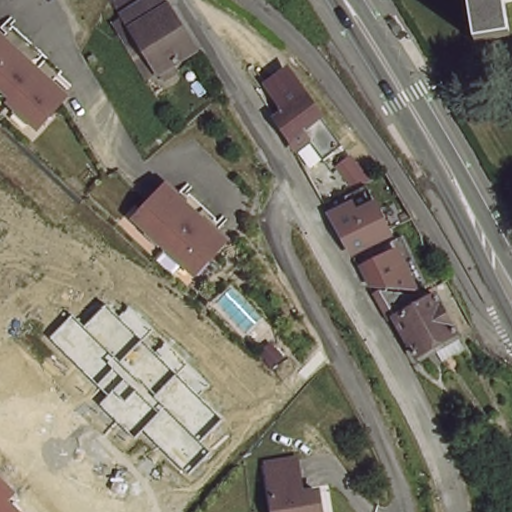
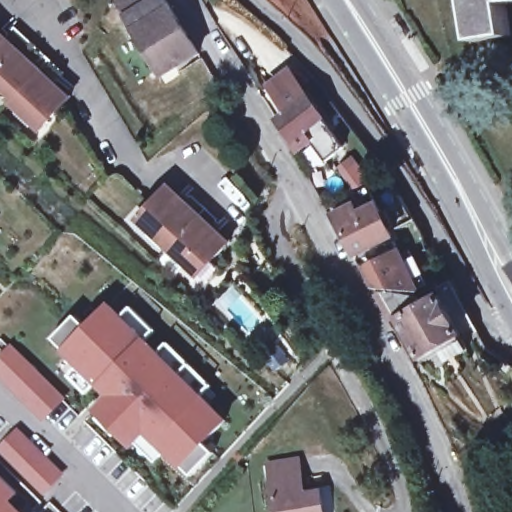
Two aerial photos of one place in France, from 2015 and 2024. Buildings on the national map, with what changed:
unchanged [(160,74),(115,0),(167,0),(199,52),(160,74)]
unchanged [(512,37),(476,42),(469,0),(512,0),(512,3),(508,4),(512,37)]
unchanged [(14,27),(63,72),(59,77),(74,91),(44,125),(15,100),(0,85),(0,25),(9,32),(14,27)]
unchanged [(348,152),(327,163),(315,140),(300,147),(296,139),(279,119),(289,111),(277,94),(270,85),(289,71),(296,80),(329,125),(348,152)]
unchanged [(169,184),(187,199),(192,194),(219,217),(214,224),(231,239),(204,267),(198,273),(138,219),(144,212),(169,184)]
unchanged [(356,199),(361,209),(378,200),(394,232),(358,251),(336,210),(356,199)]
unchanged [(403,247),(433,296),(419,303),(415,297),(380,292),(359,263),(403,247)]
unchanged [(415,297),(419,303),(433,296),(462,350),(450,357),(442,342),(414,357),(380,292),(415,297)]
unchanged [(74,315),(87,329),(112,303),(126,317),(136,306),(157,328),(143,342),(161,359),(172,346),(212,387),(201,397),(224,422),(201,446),(212,457),(191,477),(145,430),(137,437),(101,404),(110,397),(51,338),(74,315)]
new [(65,399),(44,422),(0,379),(0,355),(10,345),(65,399)]
new [(63,476),(46,493),(0,450),(0,445),(15,428),(63,476)]
unchanged [(325,512),(278,512),(274,468),(302,465),(306,498),(323,497),(325,512)]
unchanged [(14,502),(23,512),(0,512),(0,470),(22,495),(14,502)]

